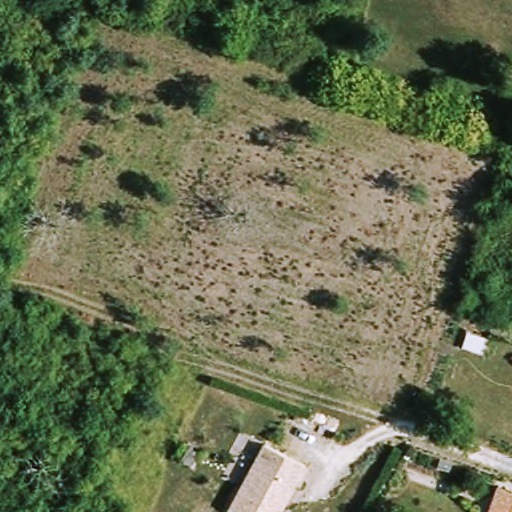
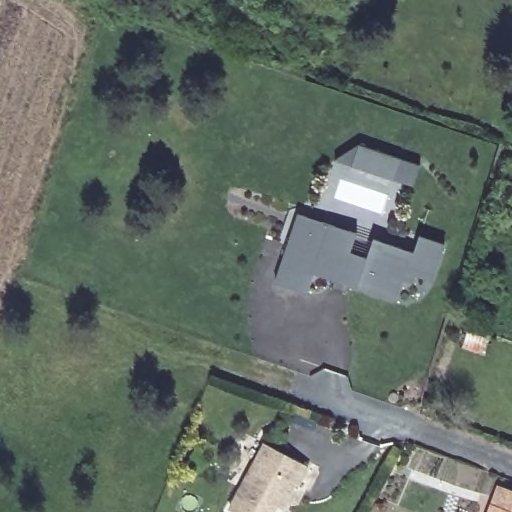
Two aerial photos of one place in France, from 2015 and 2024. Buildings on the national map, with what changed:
new [(395,179),(352,166),(359,145),(401,159),(395,179)]
new [(275,283),(300,214),(357,233),(350,252),(367,257),(374,240),(415,253),(420,236),(445,244),(432,282),(417,277),(414,283),(405,280),(397,301),(314,273),(308,293),(275,283)]
unchanged [(281,512),(236,512),(234,510),(274,447),(315,473),(285,506),(281,512)]
unchanged [(493,507),(507,512),(491,512),(493,507)]

